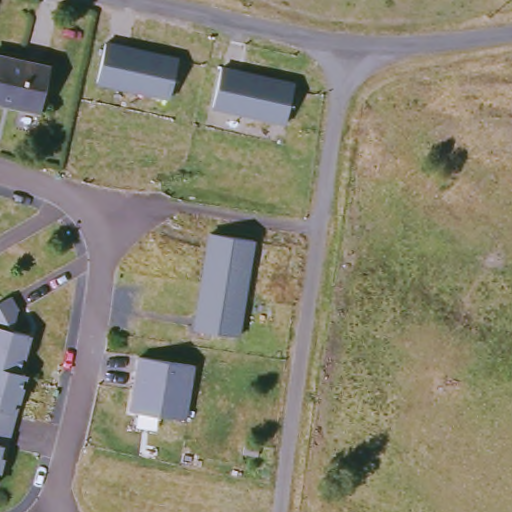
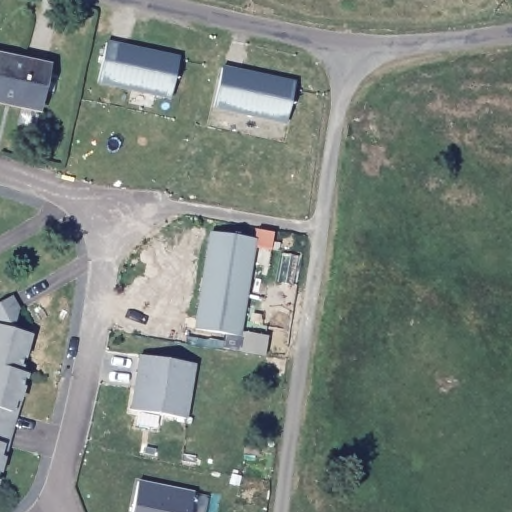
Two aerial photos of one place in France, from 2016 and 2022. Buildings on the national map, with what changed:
unchanged [(178,59),(170,97),(98,81),(106,43),(178,59)]
unchanged [(52,68),(43,112),(0,103),(0,57),(52,68)]
unchanged [(295,84),(287,122),(213,106),(222,68),(295,84)]
unchanged [(213,234),(256,240),(242,337),(199,331),(213,234)]
unchanged [(8,298),(20,316),(16,330),(33,334),(24,372),(0,367),(0,303),(8,298)]
unchanged [(202,367),(194,421),(140,413),(144,388),(146,375),(149,359),(202,367)]
unchanged [(5,486),(0,485),(0,367),(24,372),(31,374),(24,402),(11,456),(5,486)]
new [(132,512),(139,480),(194,492),(190,512),(132,512)]

